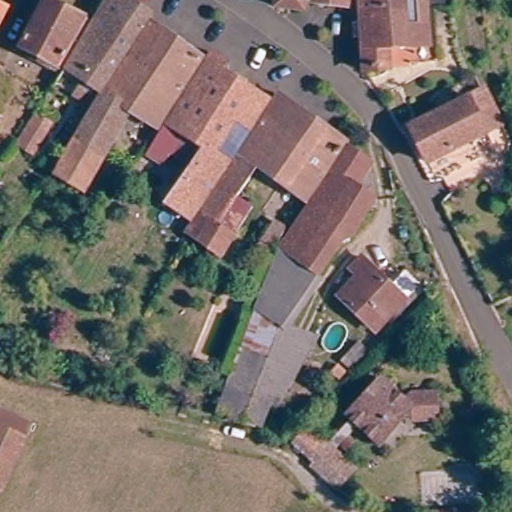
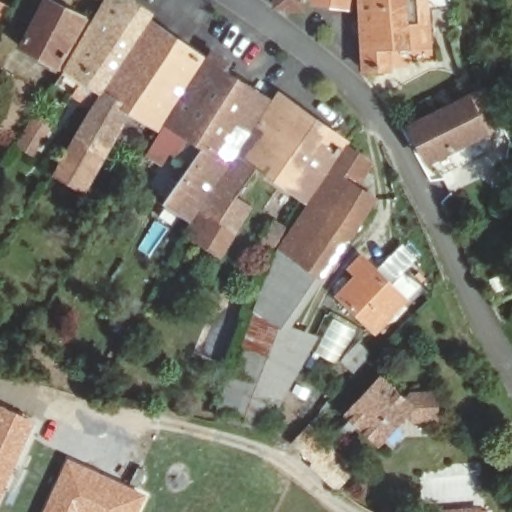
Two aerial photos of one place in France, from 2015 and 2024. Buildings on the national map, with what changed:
unchanged [(0,0),(8,0),(0,14),(0,0)]
unchanged [(68,56),(70,57),(95,16),(104,0),(145,0),(152,5),(148,12),(104,80),(85,69),(75,85),(68,81),(38,133),(33,141),(19,132),(24,124),(39,100),(68,56)]
unchanged [(51,53),(23,39),(43,0),(67,0),(86,11),(83,16),(89,19),(87,23),(80,20),(75,29),(81,32),(75,42),(68,39),(63,49),(68,51),(62,63),(57,71),(45,64),(51,53)]
unchanged [(278,9),(280,0),(307,0),(305,11),(278,9)]
unchanged [(316,4),(317,0),(350,0),(349,6),(316,4)]
unchanged [(390,47),(392,70),(367,72),(363,0),(461,0),(462,6),(440,5),(429,5),(430,17),(432,47),(390,47)]
unchanged [(106,83),(150,14),(206,50),(161,116),(131,98),(114,130),(101,150),(77,132),(106,83)]
unchanged [(213,45),(230,57),(225,63),(267,91),(191,210),(167,194),(196,154),(170,140),(160,155),(148,148),(178,97),(208,52),(213,45)]
unchanged [(188,222),(200,204),(199,204),(272,95),(278,85),(348,135),(345,137),(307,190),(259,156),(238,188),(251,197),(232,225),(219,245),(188,222)]
unchanged [(429,155),(413,122),(411,119),(471,90),(489,126),(485,128),(429,155)]
unchanged [(66,149),(77,132),(101,150),(80,180),(52,164),(66,149)]
unchanged [(356,180),(374,192),(329,266),(327,270),(280,239),(281,237),(347,139),(372,155),(356,180)]
unchanged [(96,213),(100,207),(105,210),(101,216),(96,213)]
unchanged [(259,218),(270,225),(274,219),(283,225),(279,230),(275,236),(268,249),(266,247),(248,235),(259,218)]
unchanged [(276,257),(272,255),(280,239),(327,270),(294,325),(335,333),(325,348),(337,355),(313,393),(283,380),(263,428),(216,414),(252,310),(276,257)]
unchanged [(408,301),(377,330),(342,295),(362,275),(353,266),(364,256),(408,301)]
unchanged [(408,395),(415,385),(444,386),(442,416),(405,415),(384,441),(354,417),(386,377),(408,395)]
unchanged [(31,429),(2,476),(0,475),(0,418),(4,411),(31,429)]
unchanged [(308,426),(357,465),(341,485),(292,447),(308,426)]
new [(67,456),(147,494),(139,512),(41,512),(67,456)]
unchanged [(433,508),(486,503),(487,512),(434,512),(433,508)]

